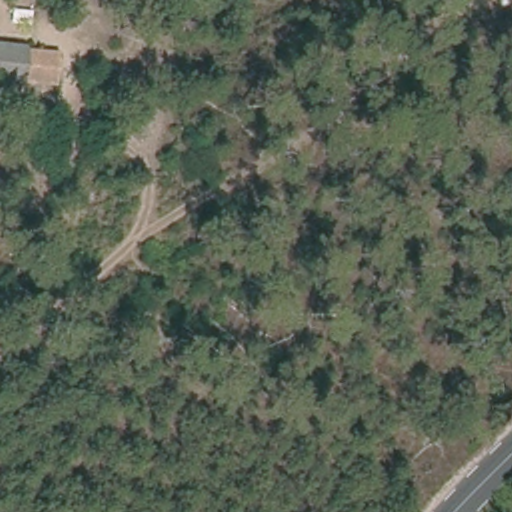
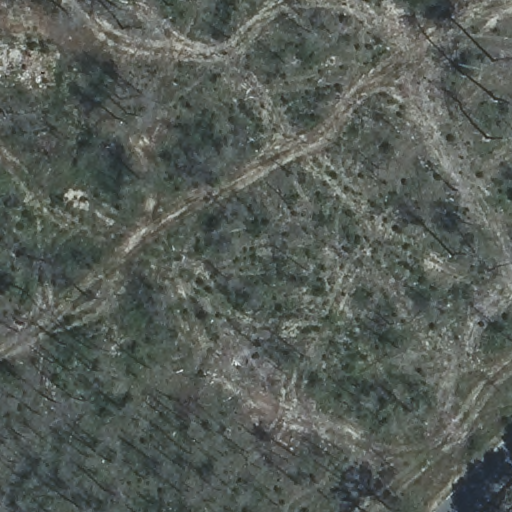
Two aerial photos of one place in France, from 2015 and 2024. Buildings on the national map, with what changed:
demolished [(56,48),(54,87),(0,83),(0,41),(56,48)]

